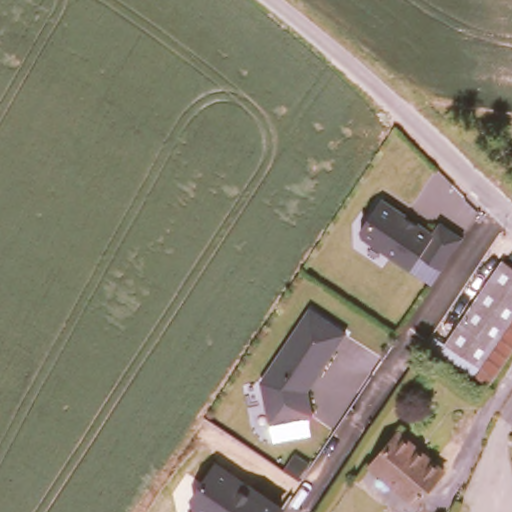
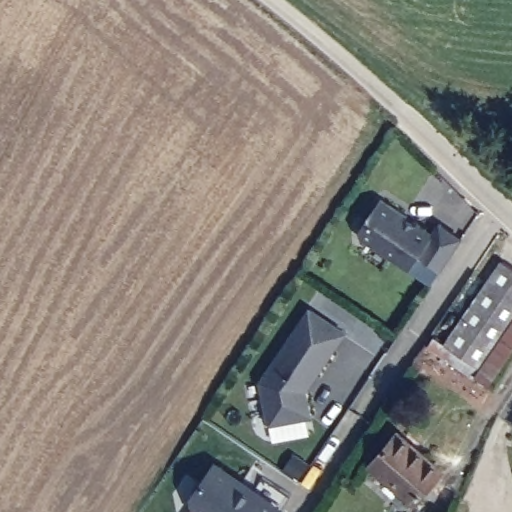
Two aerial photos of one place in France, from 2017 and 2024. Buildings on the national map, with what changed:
unchanged [(385,196),(435,235),(444,222),(462,237),(441,268),(422,254),(409,272),(360,236),(385,196)]
unchanged [(512,270),(512,344),(485,385),(470,375),(475,368),(441,345),(462,316),(451,309),(482,263),(493,270),(499,261),(512,270)]
unchanged [(261,378),(308,308),(345,335),(307,392),(310,420),(267,426),(261,378)]
unchanged [(439,470),(411,503),(365,465),(393,432),(439,470)]
unchanged [(197,512),(195,511),(192,495),(218,460),(287,506),(282,512),(197,512)]

